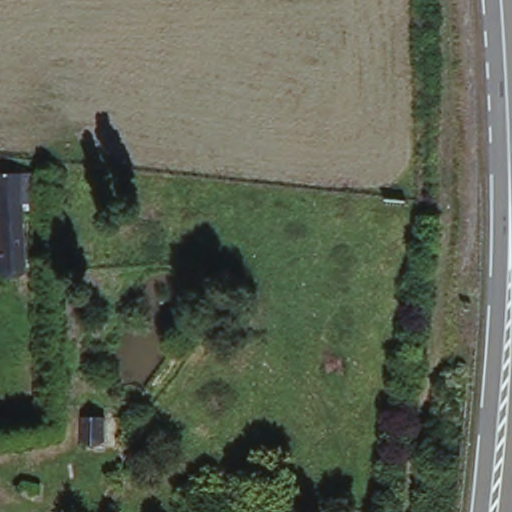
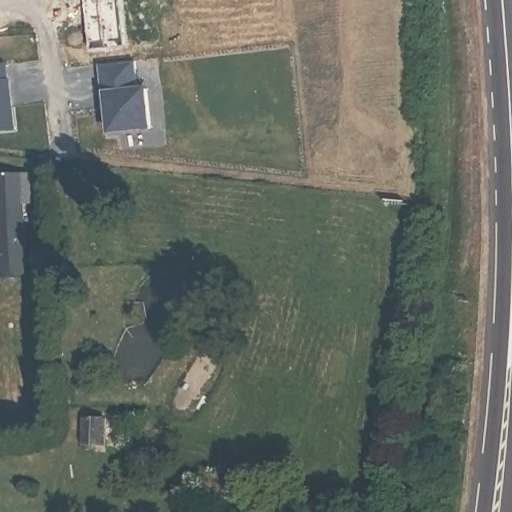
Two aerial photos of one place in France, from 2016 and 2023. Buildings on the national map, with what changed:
new [(132,64),(135,92),(145,91),(150,131),(110,136),(106,97),(103,97),(99,67),(132,64)]
new [(11,130),(0,131),(0,69),(3,69),(11,130)]
unchanged [(39,200),(29,200),(30,269),(4,270),(2,220),(0,220),(0,194),(2,194),(1,173),(39,172),(39,200)]
unchanged [(104,445),(83,444),(83,415),(104,415),(104,445)]

